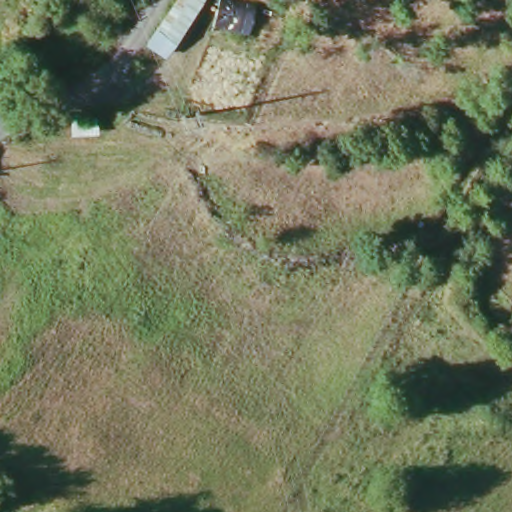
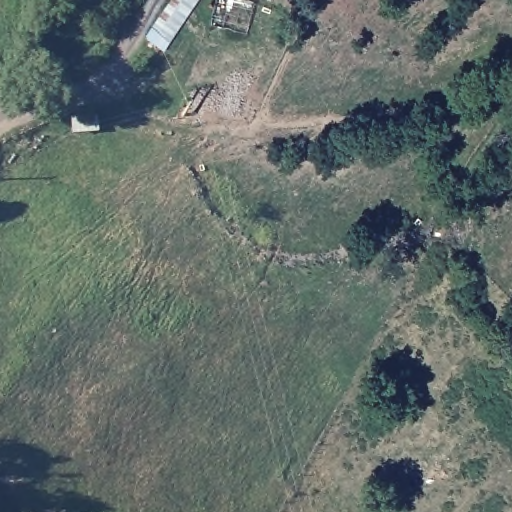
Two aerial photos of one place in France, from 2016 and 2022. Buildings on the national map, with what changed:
unchanged [(257,3),(250,36),(212,28),(217,0),(241,0),(257,3)]

